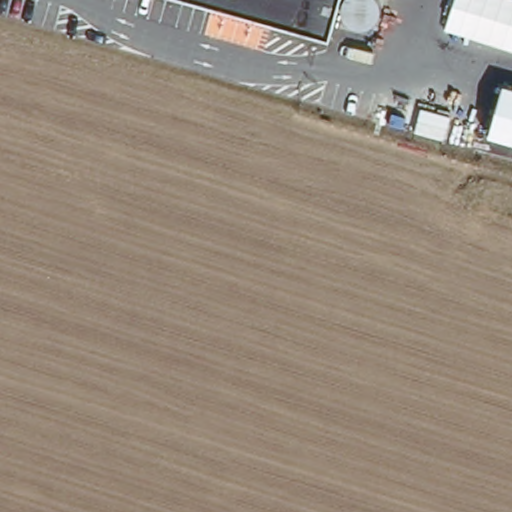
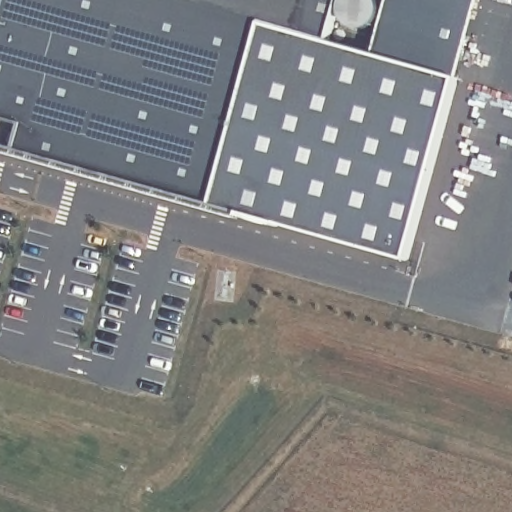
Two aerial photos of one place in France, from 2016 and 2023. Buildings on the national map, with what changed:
new [(374,54),(390,0),(479,0),(408,260),(0,143),(0,0),(192,0),(332,40),(374,54)]
unchanged [(192,0),(342,0),(332,40),(192,0)]

